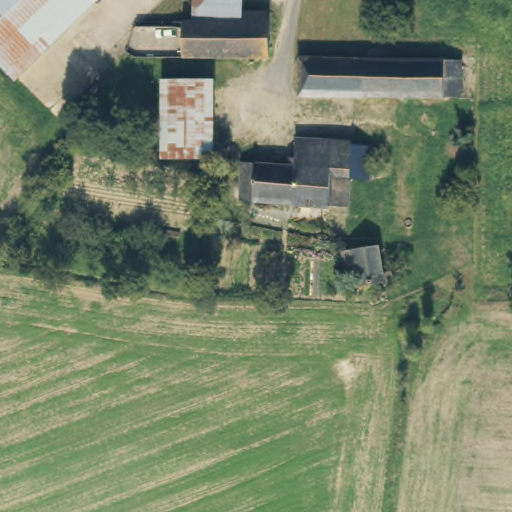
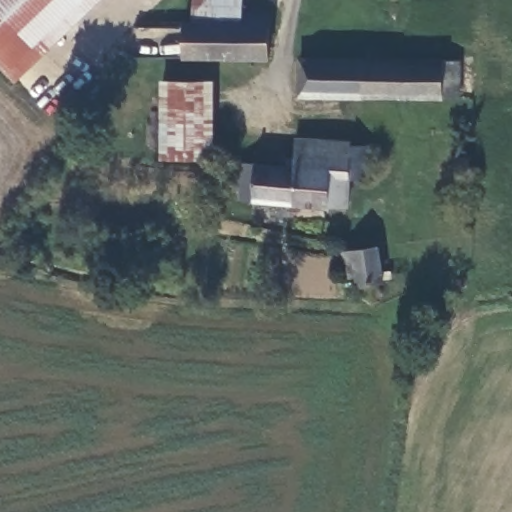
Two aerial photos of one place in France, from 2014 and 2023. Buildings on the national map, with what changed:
unchanged [(0,68),(0,0),(98,0),(12,80),(0,68)]
unchanged [(246,0),(245,14),(244,25),(197,23),(199,0),(246,0)]
unchanged [(269,61),(186,57),(187,22),(197,23),(244,25),(245,14),(271,15),(269,61)]
unchanged [(461,60),(461,97),(300,97),(300,60),(461,60)]
unchanged [(214,80),(217,162),(166,164),(163,81),(214,80)]
unchanged [(324,202),(324,205),(238,205),(239,162),(288,162),(288,136),(346,136),(346,145),(362,145),(362,173),(345,173),(345,202),(324,202)]
unchanged [(379,239),(384,291),(363,292),(359,267),(345,267),(341,243),(379,239)]

